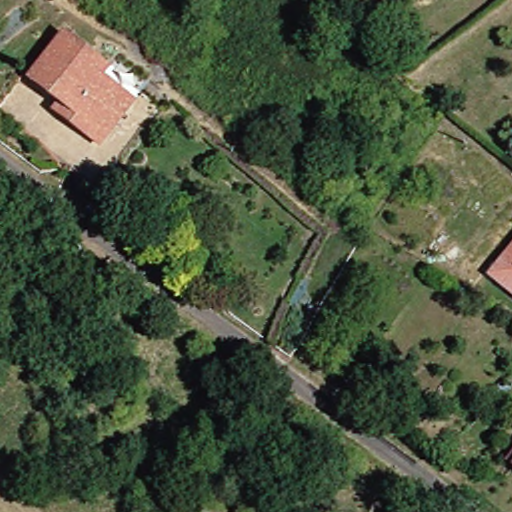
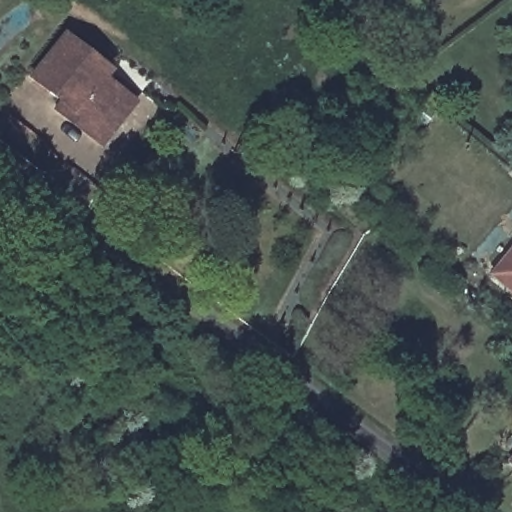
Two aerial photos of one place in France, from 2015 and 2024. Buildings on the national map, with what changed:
unchanged [(26,73),(63,30),(105,67),(98,75),(123,97),(89,132),(54,99),(26,73)]
unchanged [(89,132),(123,97),(133,103),(132,105),(95,147),(49,106),(54,99),(89,132)]
unchanged [(512,238),(512,292),(485,272),(512,238)]
unchanged [(512,450),(512,460),(507,456),(512,450)]

